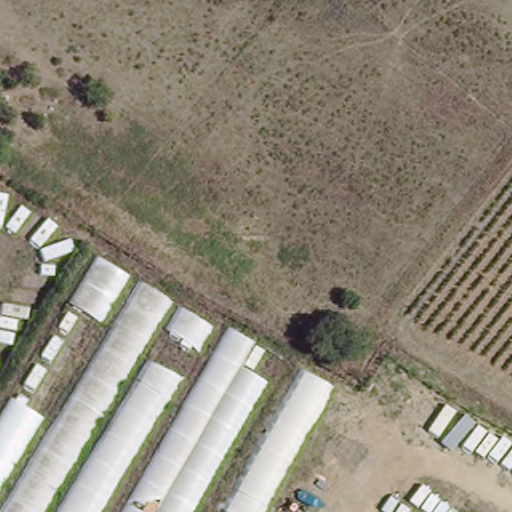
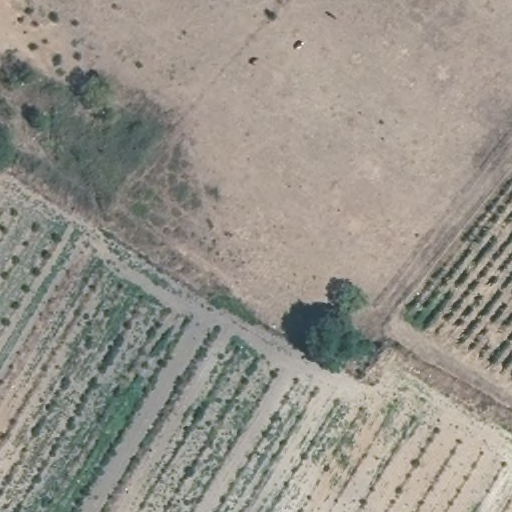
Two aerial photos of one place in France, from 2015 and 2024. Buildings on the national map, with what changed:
demolished [(132,276),(215,324),(229,319),(272,347),(180,512),(0,512),(0,416),(98,254),(132,276)]

